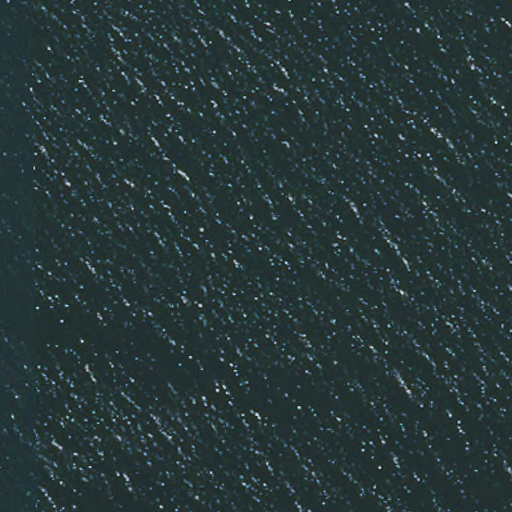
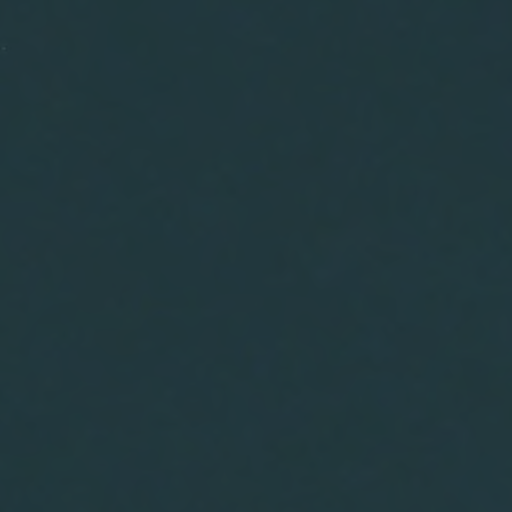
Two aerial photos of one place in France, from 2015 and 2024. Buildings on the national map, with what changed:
[]

